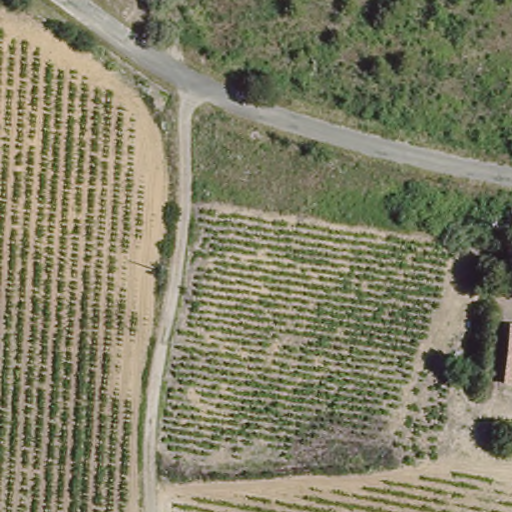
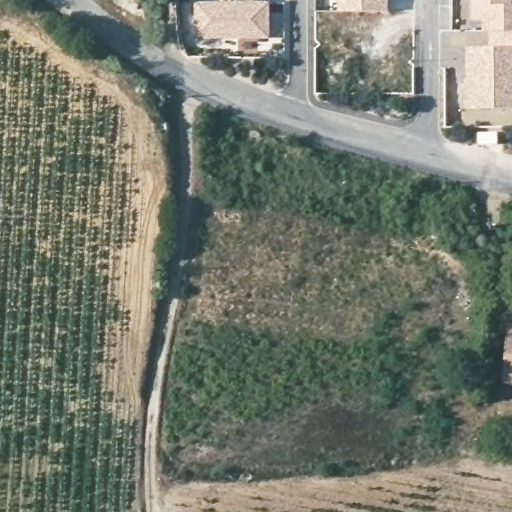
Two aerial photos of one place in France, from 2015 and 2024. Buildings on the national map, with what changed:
new [(234,0),(262,0),(271,1),(271,39),(257,39),(237,38),(196,38),(195,2),(234,0)]
new [(338,11),(338,0),(390,0),(390,11),(338,11)]
new [(490,47),(490,32),(483,32),(483,20),(472,20),(472,0),(512,0),(512,48),(490,47)]
new [(463,47),(512,48),(512,111),(462,111),(463,47)]
unchanged [(503,376),(512,340),(512,378),(503,376)]

